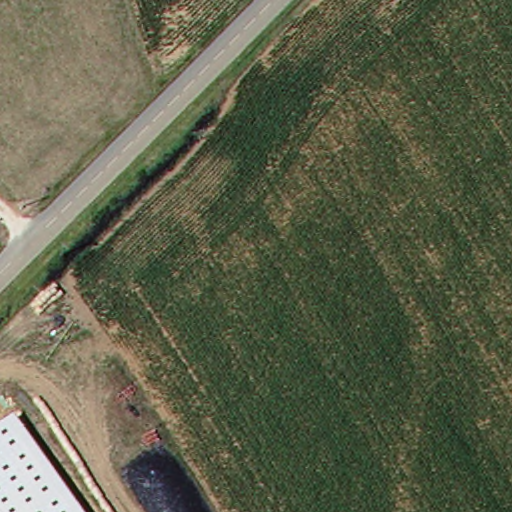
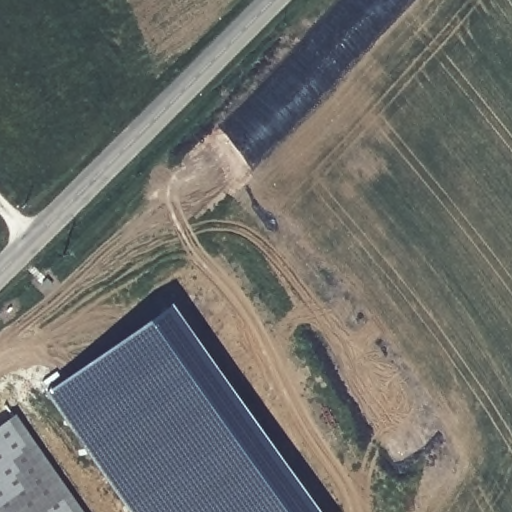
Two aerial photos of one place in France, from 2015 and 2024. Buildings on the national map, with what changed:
new [(42,393),(166,303),(312,512),(126,512),(42,393)]
new [(15,417),(80,512),(0,512),(0,428),(15,417)]

